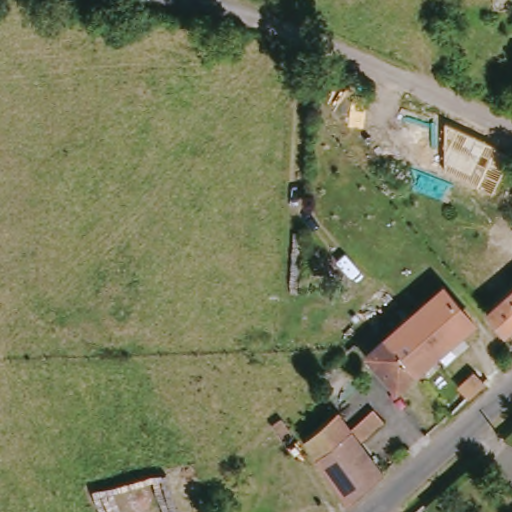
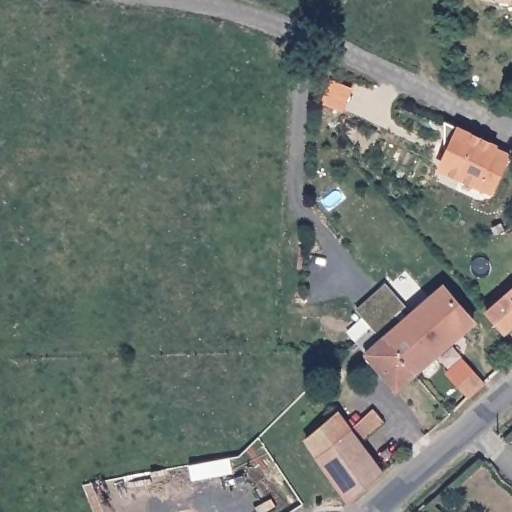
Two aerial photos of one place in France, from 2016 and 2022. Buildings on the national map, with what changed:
new [(493,196),(436,171),(457,127),(498,146),(496,150),(511,156),(493,196)]
unchanged [(478,325),(421,375),(391,338),(398,333),(451,292),(467,308),(478,325)]
unchanged [(512,330),(505,336),(488,313),(512,294),(512,330)]
unchanged [(384,320),(398,333),(391,338),(421,375),(402,391),(370,356),(375,352),(364,342),(384,320)]
unchanged [(473,404),(460,387),(477,372),(488,388),(473,404)]
unchanged [(321,457),(307,437),(342,412),(356,431),(321,457)]
unchanged [(351,502),(321,457),(356,431),(379,416),(390,432),(368,450),(385,475),(351,502)]

